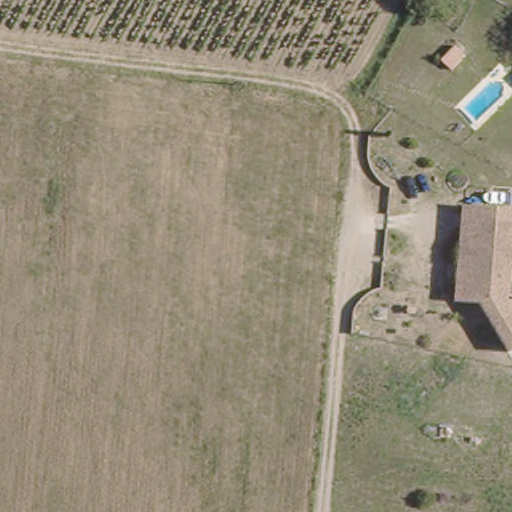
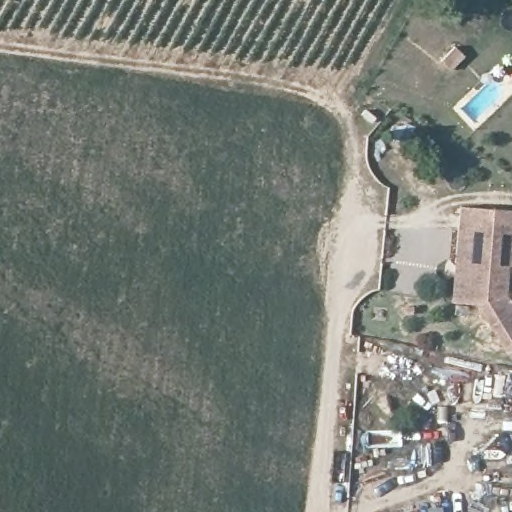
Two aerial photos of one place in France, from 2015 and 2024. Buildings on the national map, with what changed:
unchanged [(512,215),(512,271),(505,272),(503,300),(512,311),(512,346),(508,349),(471,305),(450,305),(458,210),(512,215)]

